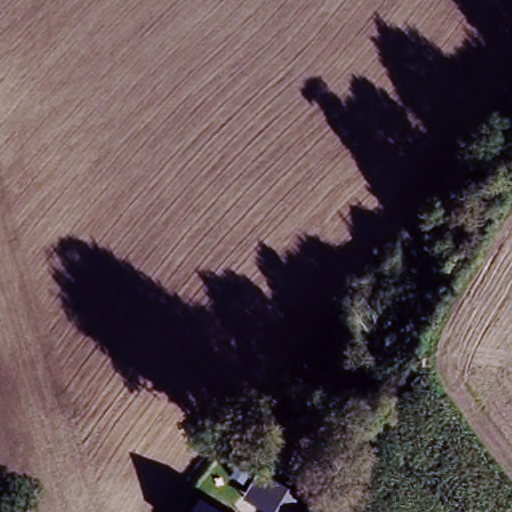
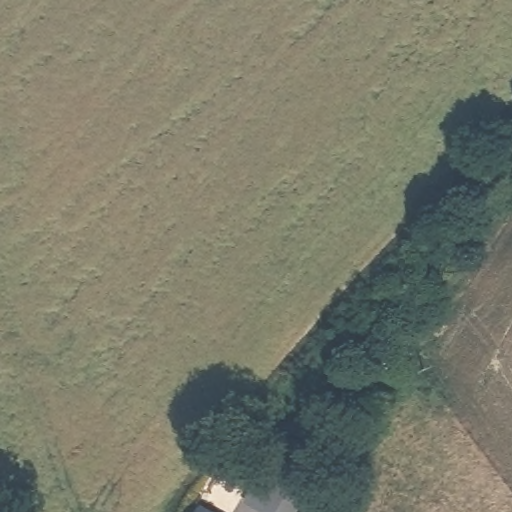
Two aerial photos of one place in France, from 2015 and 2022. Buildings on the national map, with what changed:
unchanged [(286,512),(261,512),(244,502),(260,473),(296,495),(286,512)]
unchanged [(194,512),(198,505),(212,512),(194,512)]

